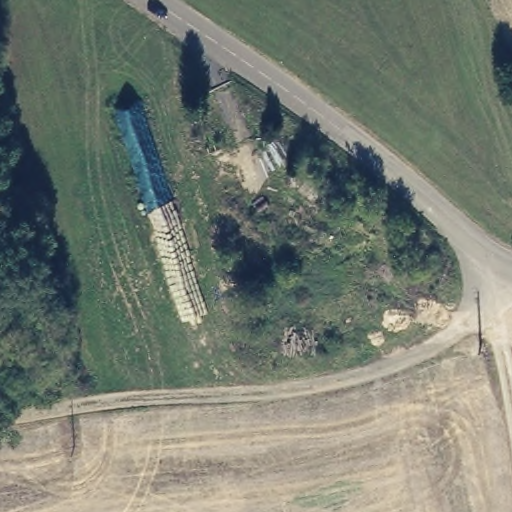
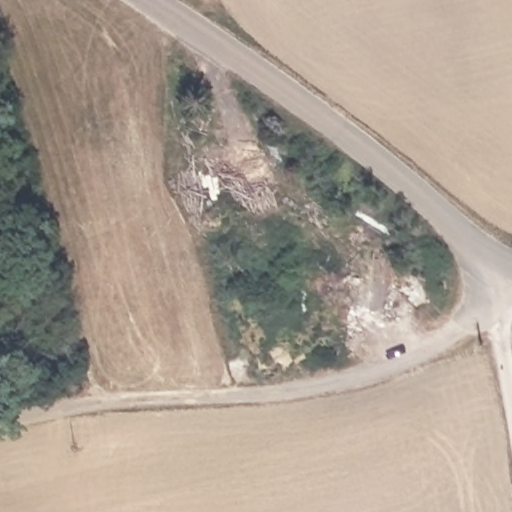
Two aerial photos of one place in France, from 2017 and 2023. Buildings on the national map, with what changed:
unchanged [(295,163),(304,155),(331,181),(322,190),(295,163)]
unchanged [(345,195),(365,214),(356,223),(336,204),(345,195)]

